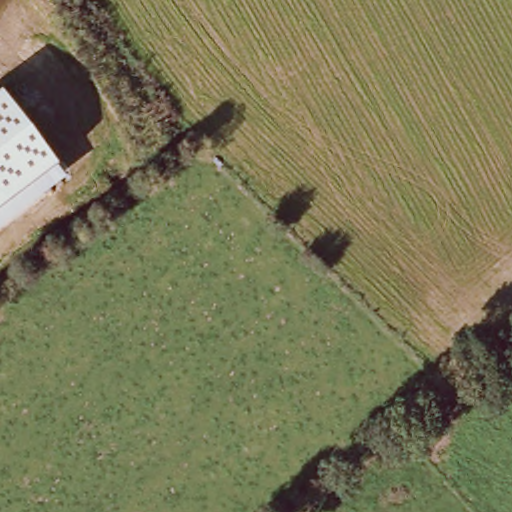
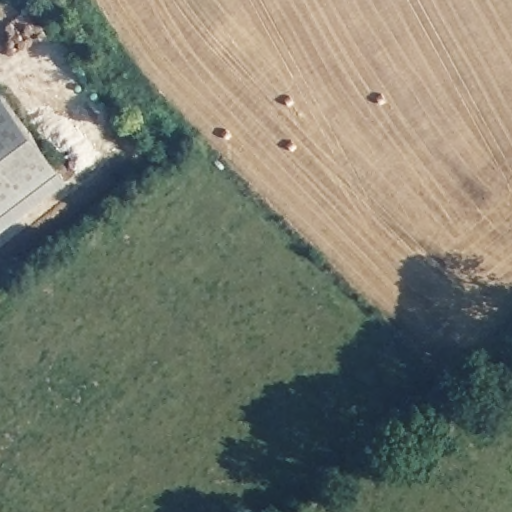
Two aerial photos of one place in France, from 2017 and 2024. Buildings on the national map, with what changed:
unchanged [(57,164),(0,206),(0,90),(57,164)]

